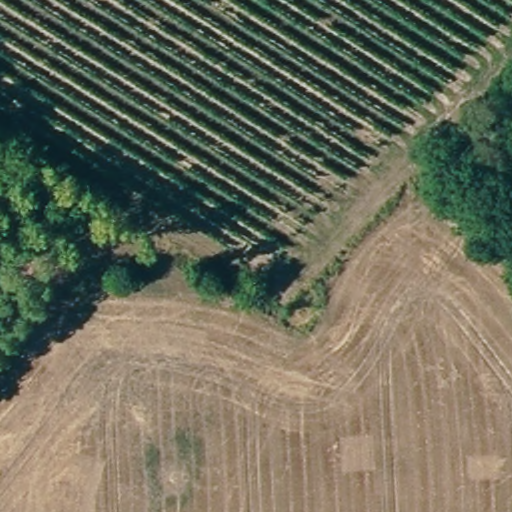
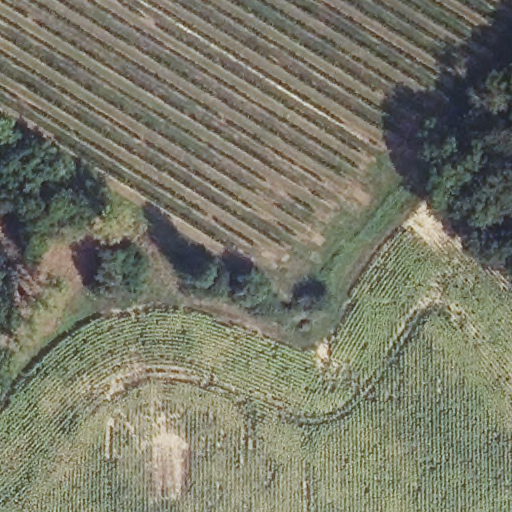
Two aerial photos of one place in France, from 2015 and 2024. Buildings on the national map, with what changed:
[]

